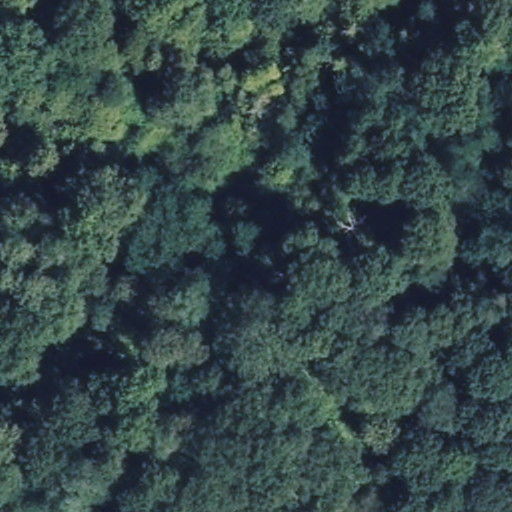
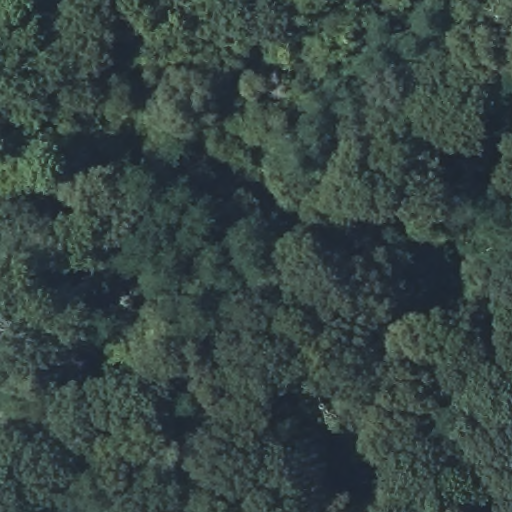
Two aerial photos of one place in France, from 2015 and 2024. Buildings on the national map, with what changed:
[]

